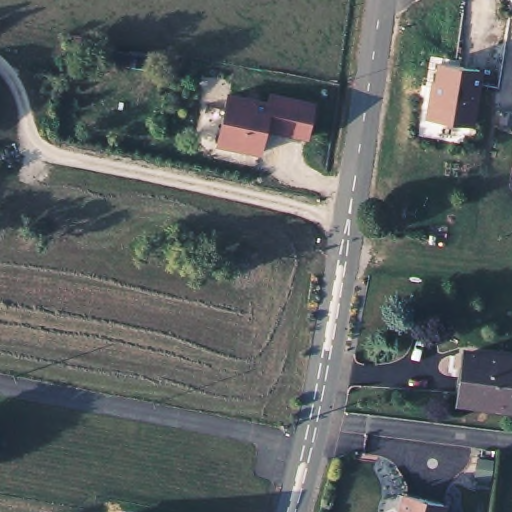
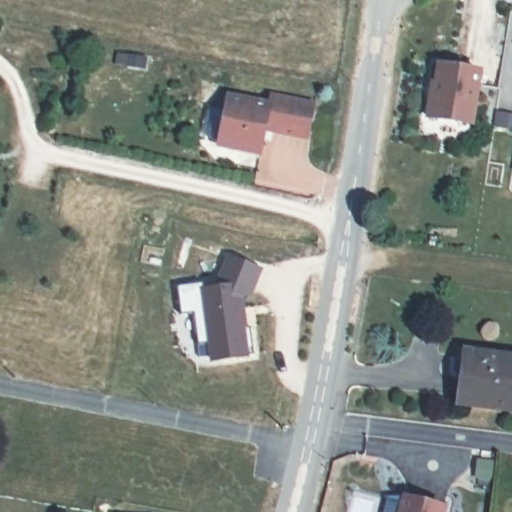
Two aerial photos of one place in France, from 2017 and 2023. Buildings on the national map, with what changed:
unchanged [(473,126),(427,119),(430,81),(433,81),(436,65),(482,69),(473,126)]
unchanged [(307,140),(266,132),(260,155),(216,147),(225,93),(267,101),(268,93),(315,102),(307,140)]
new [(205,293),(207,300),(218,298),(231,265),(263,278),(254,302),(242,304),(247,337),(255,336),(260,364),(218,371),(215,354),(203,356),(197,325),(185,327),(180,297),(205,293)]
unchanged [(512,419),(448,412),(453,361),(512,367),(512,419)]
unchanged [(397,512),(398,505),(426,512),(397,512)]

